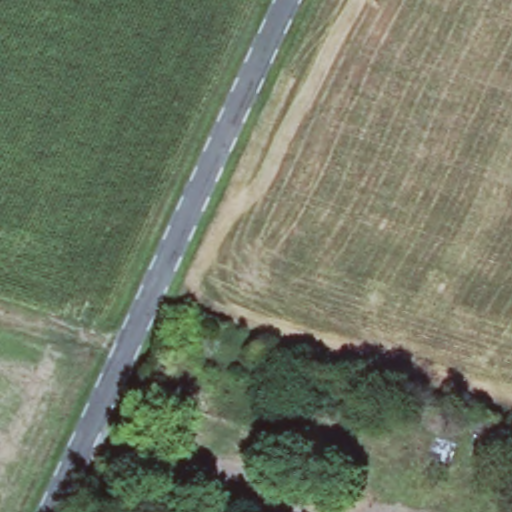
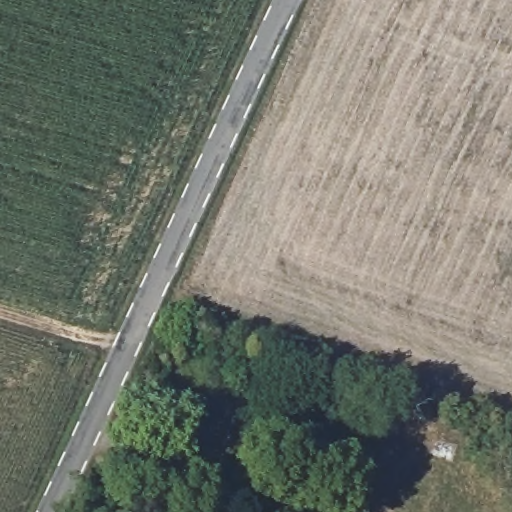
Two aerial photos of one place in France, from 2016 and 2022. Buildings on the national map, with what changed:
unchanged [(460,446),(456,467),(429,462),(433,441),(460,446)]

